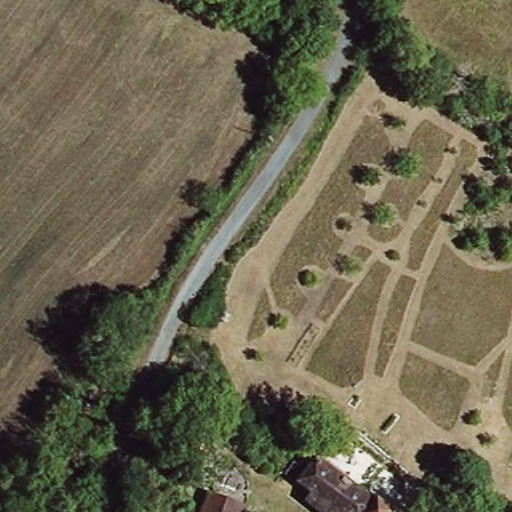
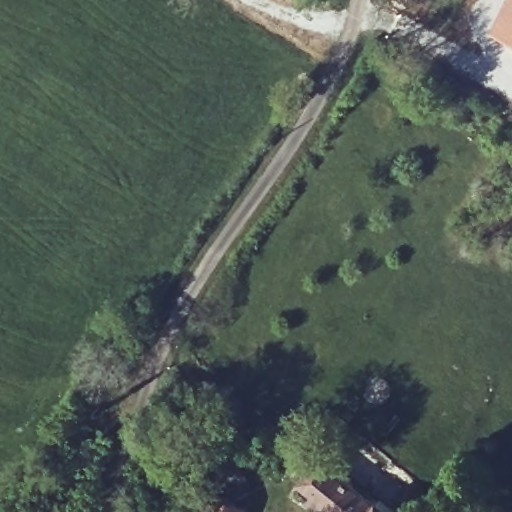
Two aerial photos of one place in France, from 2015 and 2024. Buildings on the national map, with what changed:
new [(505,0),(512,0),(512,40),(491,30),(505,0)]
unchanged [(327,456),(387,502),(380,512),(350,512),(325,512),(314,503),(323,491),(309,480),(327,456)]
unchanged [(243,512),(202,512),(210,490),(245,504),(243,512)]

